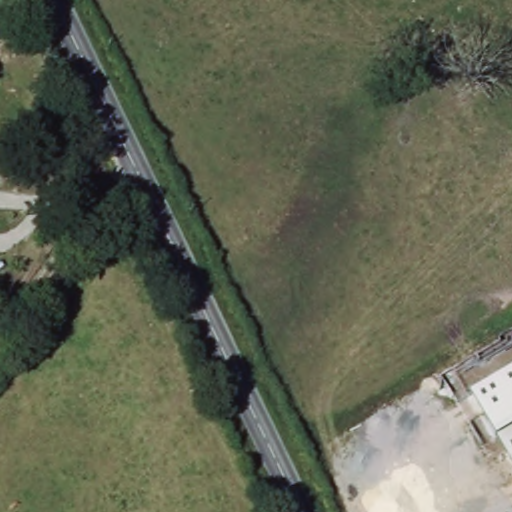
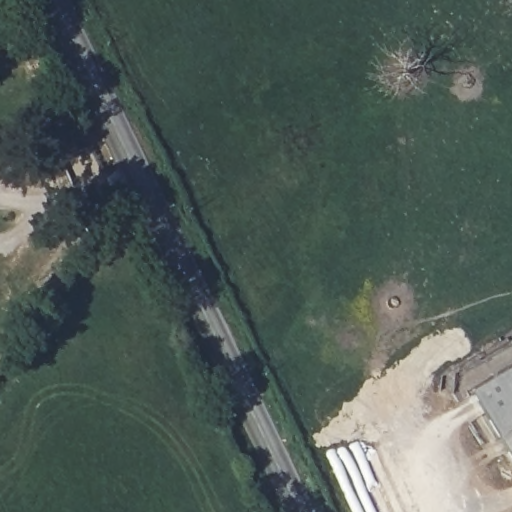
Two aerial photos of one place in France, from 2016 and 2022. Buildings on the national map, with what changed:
unchanged [(474,394),(512,371),(512,460),(474,394)]

